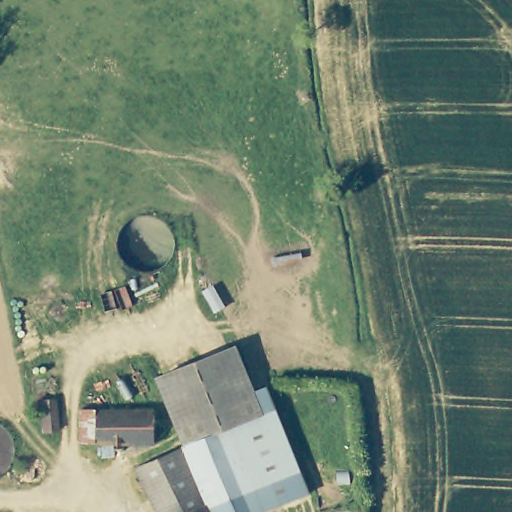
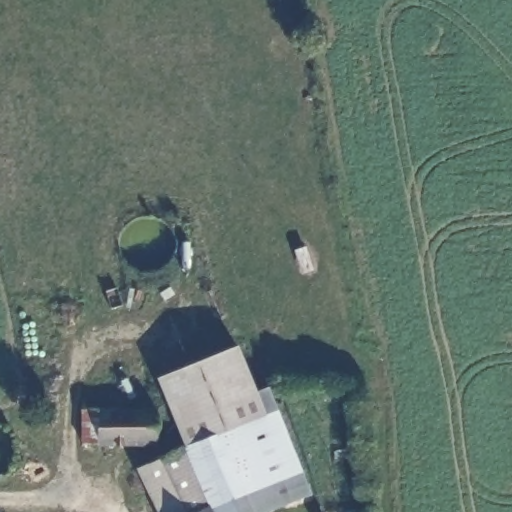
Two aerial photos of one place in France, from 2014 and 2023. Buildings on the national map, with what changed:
unchanged [(164,378),(241,346),(260,393),(272,388),(315,493),(268,512),(218,512),(192,447),(164,378)]
unchanged [(60,430),(43,428),(41,399),(57,398),(60,430)]
unchanged [(77,408),(92,408),(149,409),(149,441),(92,441),(75,441),(77,408)]
unchanged [(216,512),(165,512),(142,468),(190,448),(216,512)]

